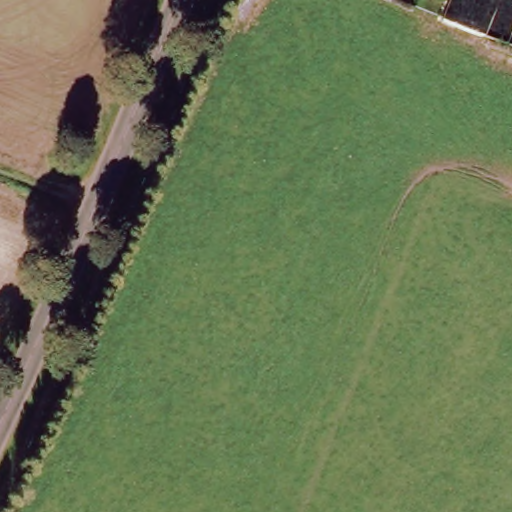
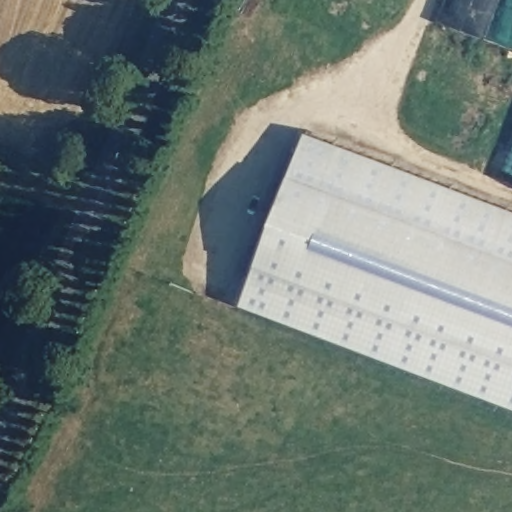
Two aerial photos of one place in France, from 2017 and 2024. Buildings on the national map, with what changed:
new [(512,203),(512,404),(242,301),(308,126),(512,203)]

